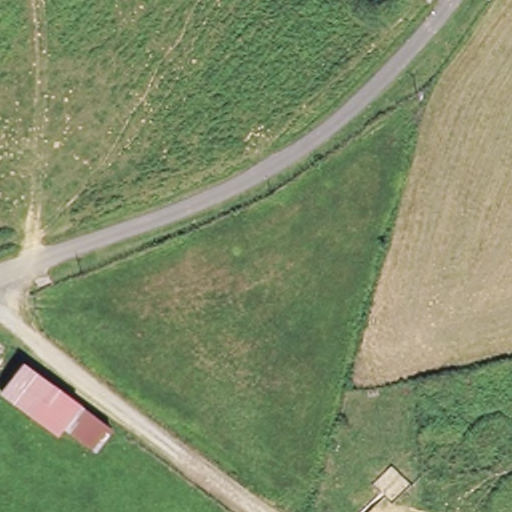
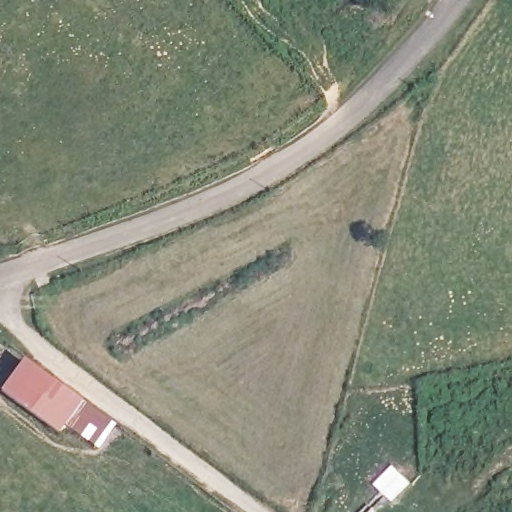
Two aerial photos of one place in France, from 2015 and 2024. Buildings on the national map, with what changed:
unchanged [(61,431),(56,437),(1,394),(27,360),(81,403),(61,431)]
unchanged [(90,453),(61,431),(81,403),(111,426),(90,453)]

